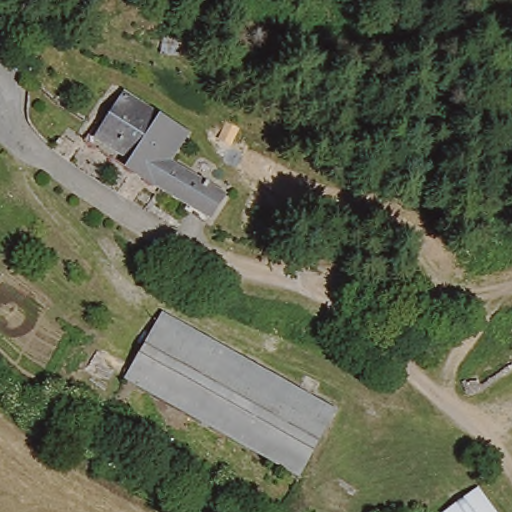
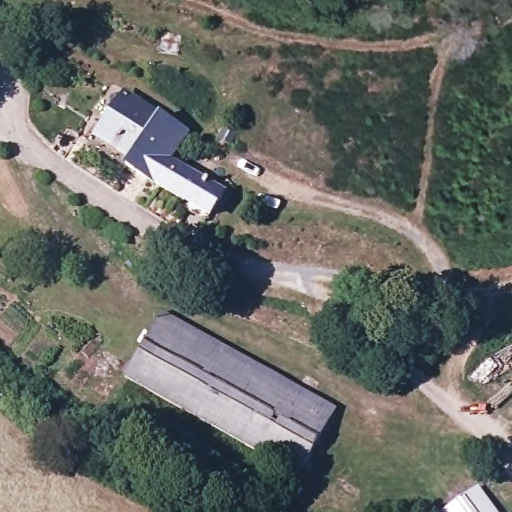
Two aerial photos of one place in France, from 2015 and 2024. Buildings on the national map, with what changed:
unchanged [(208,221),(121,174),(128,161),(90,142),(123,89),(192,128),(175,160),(215,183),(226,189),(215,209),(208,221)]
unchanged [(297,470),(125,372),(162,307),(335,403),(297,470)]
unchanged [(479,487),(482,492),(495,512),(445,512),(466,496),(479,487)]

